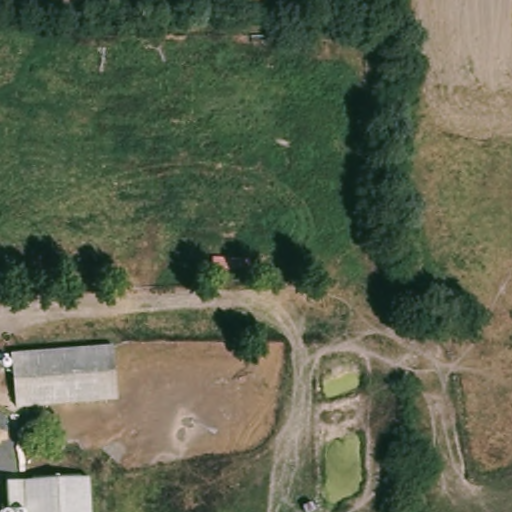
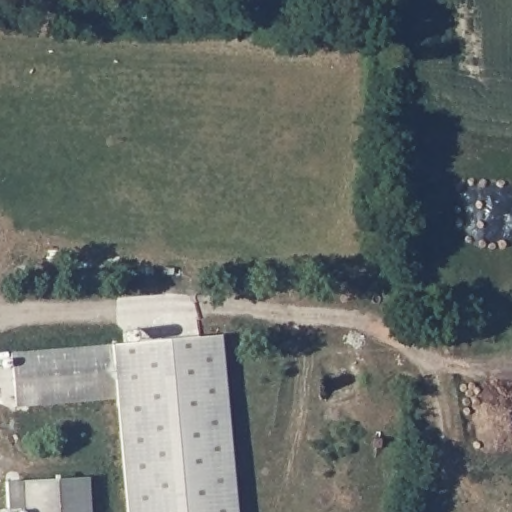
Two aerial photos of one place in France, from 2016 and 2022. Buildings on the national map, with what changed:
new [(222,334),(238,512),(130,512),(120,398),(117,341),(222,334)]
unchanged [(19,407),(14,367),(3,376),(1,362),(13,363),(12,352),(117,341),(120,398),(19,407)]
unchanged [(6,482),(89,475),(91,512),(10,512),(6,482)]

